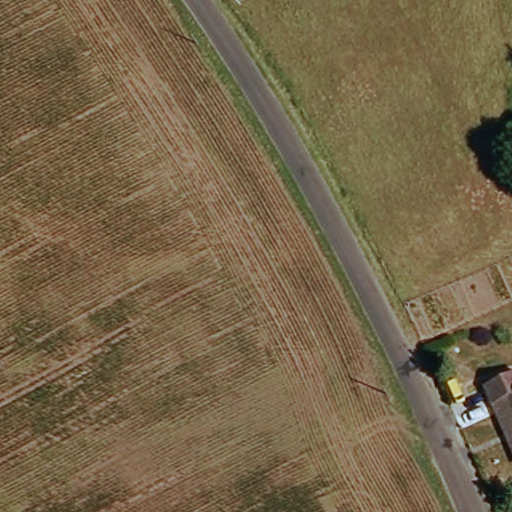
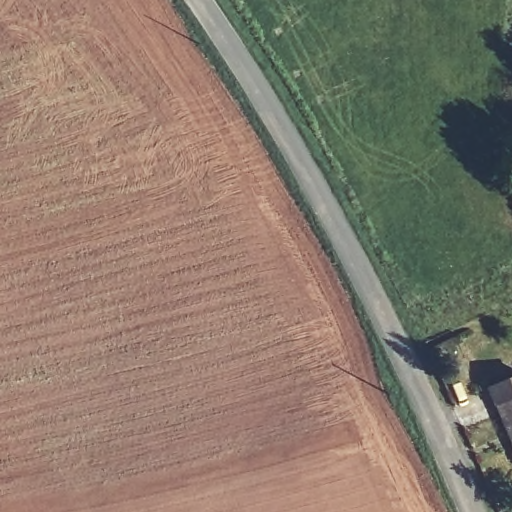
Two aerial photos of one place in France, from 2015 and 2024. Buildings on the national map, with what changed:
unchanged [(489,391),(512,380),(512,440),(489,391)]

